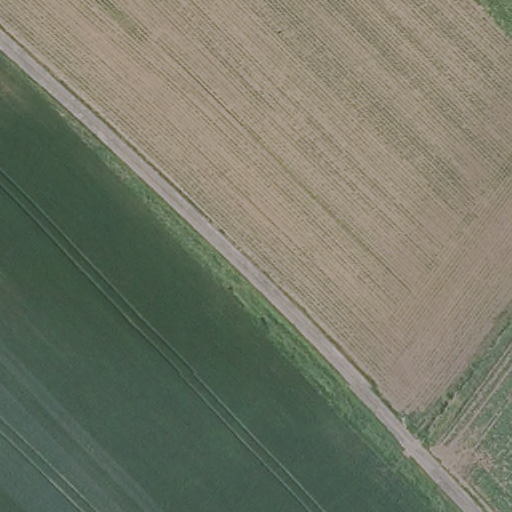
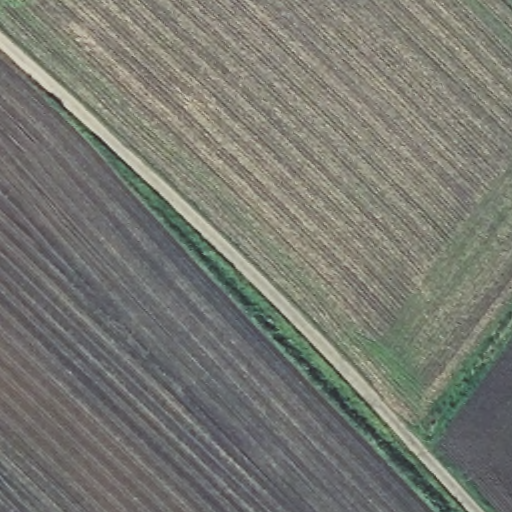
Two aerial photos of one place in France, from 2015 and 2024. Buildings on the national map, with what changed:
[]

